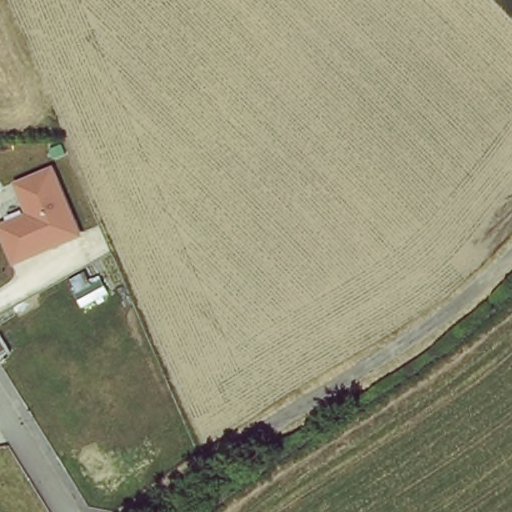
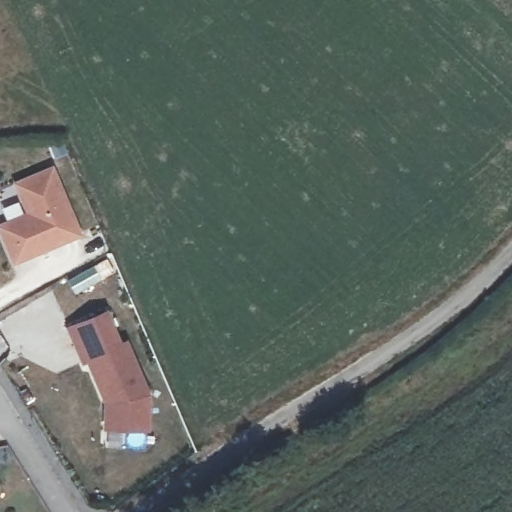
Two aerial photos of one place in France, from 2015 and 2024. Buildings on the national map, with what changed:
unchanged [(12,180),(52,163),(83,234),(12,266),(0,230),(0,223),(25,211),(12,180)]
new [(102,429),(102,401),(85,361),(80,364),(65,326),(107,309),(120,341),(127,339),(150,393),(148,430),(102,429)]

